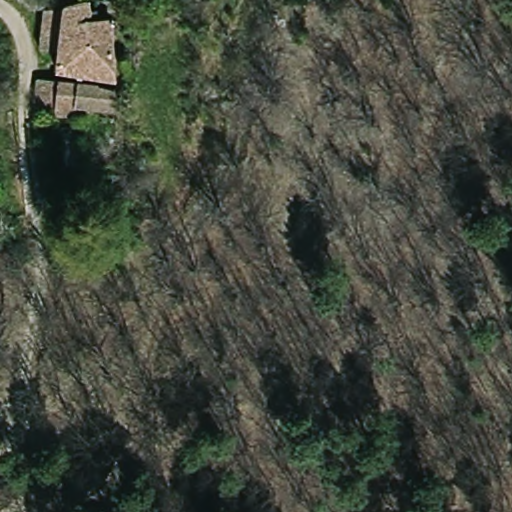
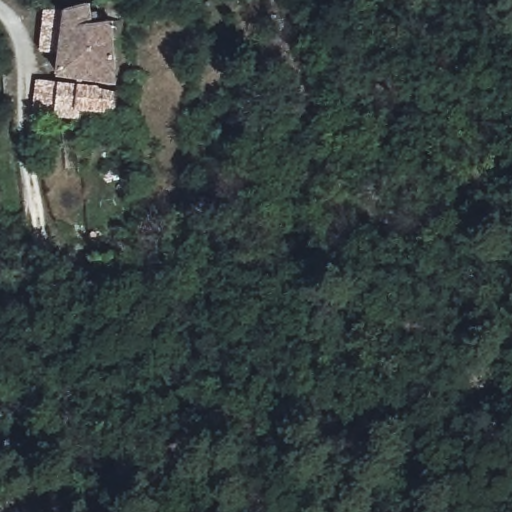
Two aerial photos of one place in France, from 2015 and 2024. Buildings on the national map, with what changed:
unchanged [(42,52),(46,9),(67,7),(70,1),(75,0),(88,0),(88,7),(99,8),(100,16),(108,15),(117,76),(59,71),(61,52),(42,52)]
unchanged [(121,86),(120,108),(112,106),(84,105),(84,116),(58,115),(58,113),(35,112),(39,80),(102,83),(102,88),(121,86)]

